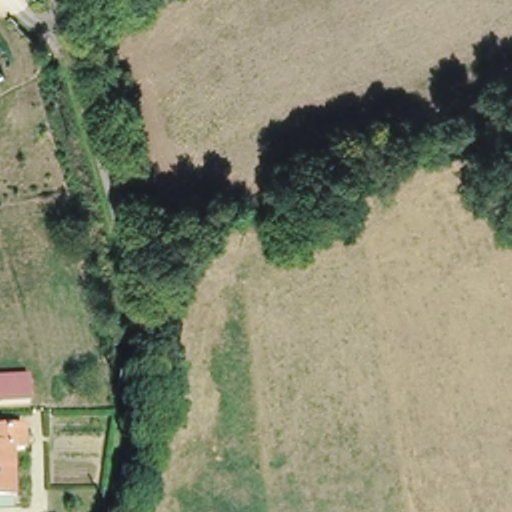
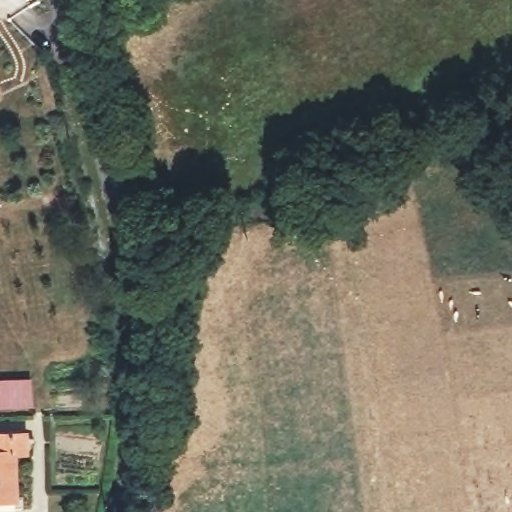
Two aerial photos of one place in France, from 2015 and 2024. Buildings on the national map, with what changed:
unchanged [(29,378),(30,405),(0,405),(0,379),(29,378)]
unchanged [(21,424),(23,449),(10,450),(12,496),(0,496),(0,425),(21,424)]

